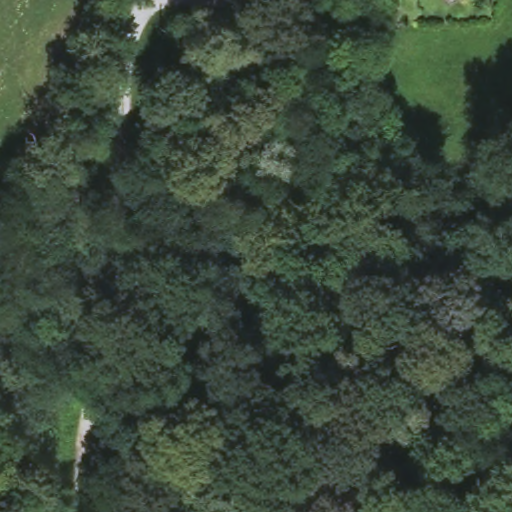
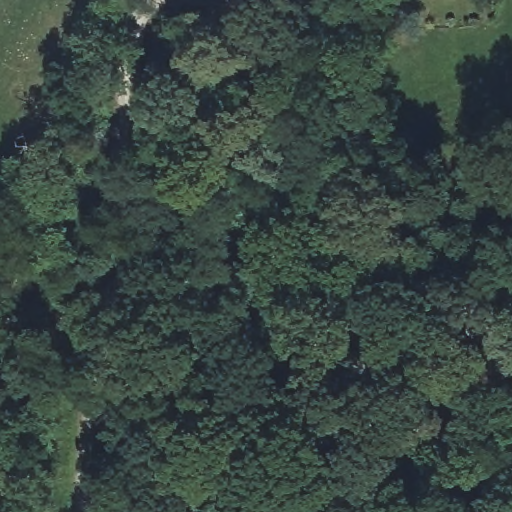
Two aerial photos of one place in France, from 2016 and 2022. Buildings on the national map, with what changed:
[]

